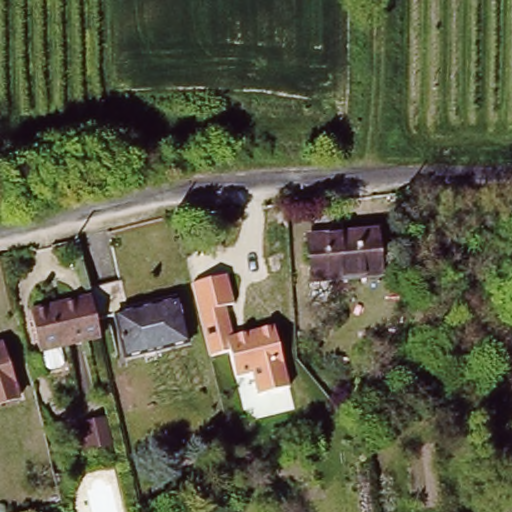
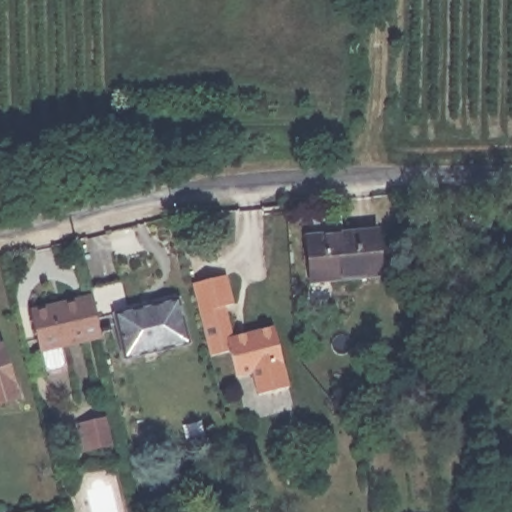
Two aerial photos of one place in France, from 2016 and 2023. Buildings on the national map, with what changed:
unchanged [(380,231),(387,279),(310,285),(304,234),(380,231)]
unchanged [(236,305),(227,308),(234,335),(275,325),(291,387),(257,395),(252,374),(236,378),(229,352),(210,357),(191,282),(227,273),(236,305)]
unchanged [(120,283),(127,313),(179,301),(189,345),(125,361),(114,318),(96,322),(91,302),(88,290),(120,283)]
unchanged [(96,322),(101,342),(40,357),(31,315),(91,302),(96,322)]
unchanged [(18,406),(0,412),(0,357),(4,355),(18,406)]
unchanged [(111,444),(90,449),(85,428),(106,421),(111,444)]

